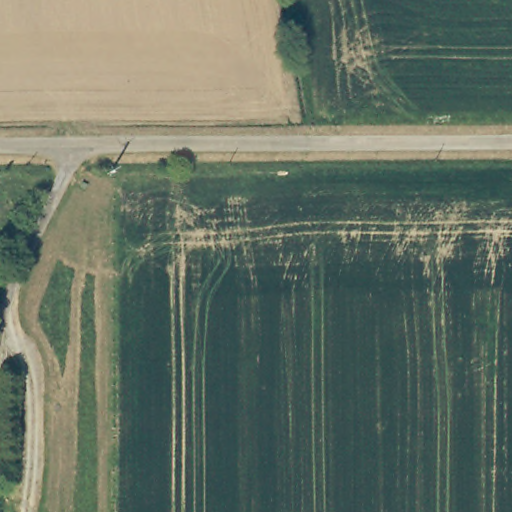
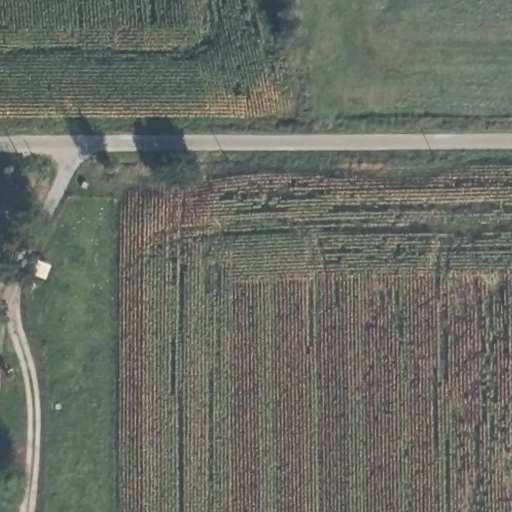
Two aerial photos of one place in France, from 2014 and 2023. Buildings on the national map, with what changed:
[]

